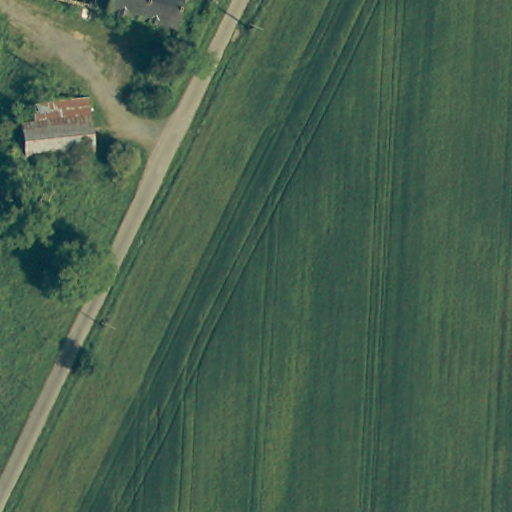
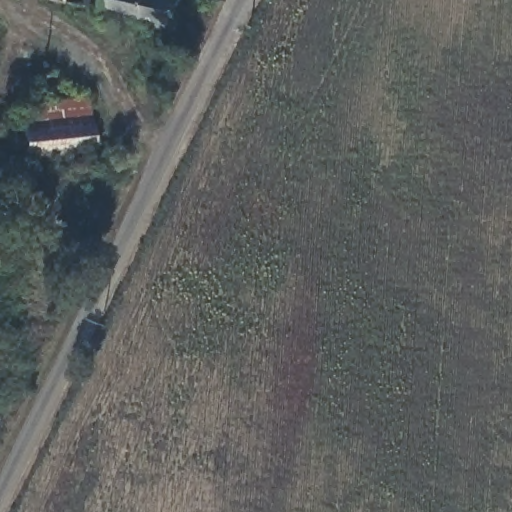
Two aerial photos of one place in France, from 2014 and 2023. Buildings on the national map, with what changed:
unchanged [(54,0),(183,0),(176,28),(54,0)]
unchanged [(35,124),(33,104),(86,99),(93,152),(11,162),(5,127),(35,124)]

